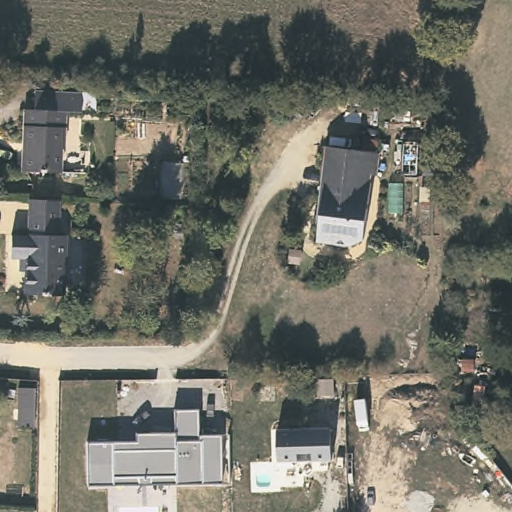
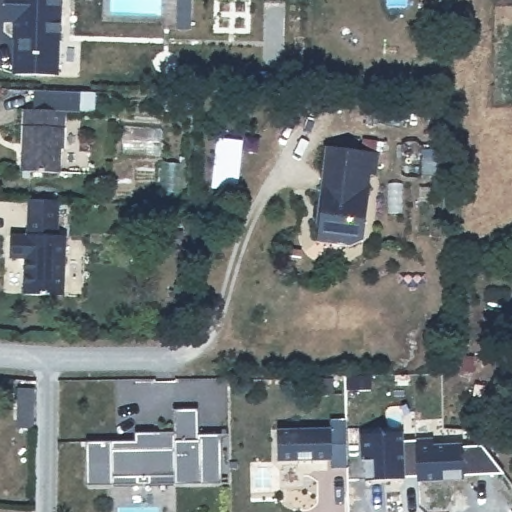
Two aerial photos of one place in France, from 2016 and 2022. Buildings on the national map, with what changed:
new [(5,0),(61,0),(59,39),(55,39),(53,74),(15,72),(17,37),(13,36),(14,19),(4,19),(5,0)]
unchanged [(85,86),(84,107),(68,107),(64,167),(25,167),(27,104),(36,102),(37,84),(85,86)]
unchanged [(378,152),(376,177),(369,176),(363,239),(349,246),(314,241),(317,227),(312,217),(318,217),(319,203),(315,203),(324,145),(378,152)]
unchanged [(58,196),(56,232),(65,232),(63,291),(23,291),(24,255),(8,254),(9,231),(25,231),(27,195),(58,196)]
unchanged [(224,482),(88,485),(88,443),(138,442),(137,432),(174,432),(177,432),(177,410),(198,410),(198,435),(221,435),(224,482)]
unchanged [(331,460),(278,462),(277,429),(330,427),(331,460)]
new [(366,434),(407,433),(407,442),(438,442),(438,448),(467,448),(467,450),(486,450),(508,478),(467,479),(467,482),(421,482),(421,478),(408,478),(408,480),(370,480),(370,456),(366,456),(366,434)]

